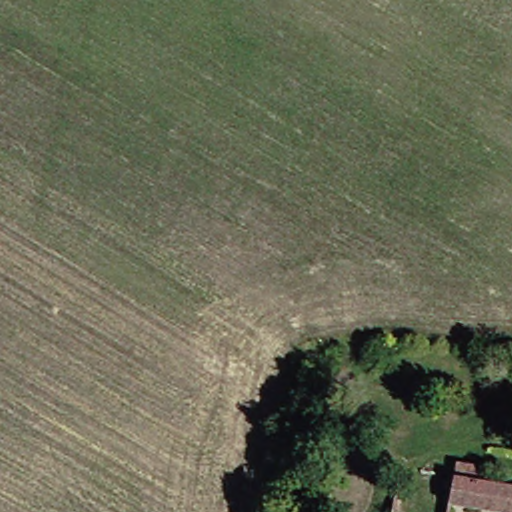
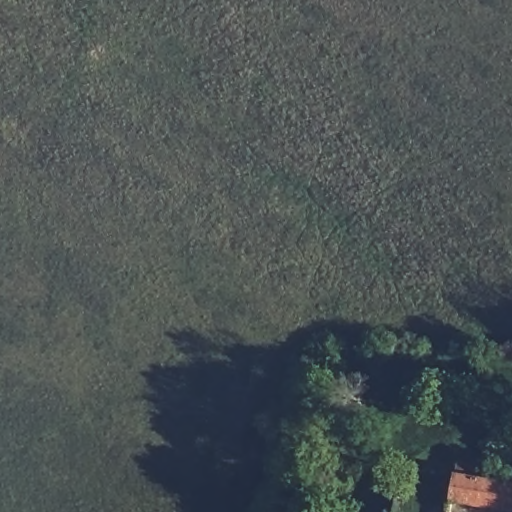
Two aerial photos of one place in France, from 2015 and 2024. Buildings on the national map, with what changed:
unchanged [(457,479),(458,464),(496,466),(496,479),(512,481),(512,510),(457,508),(457,479)]

